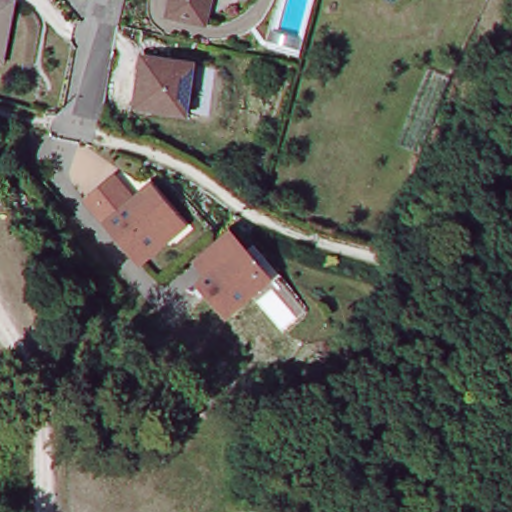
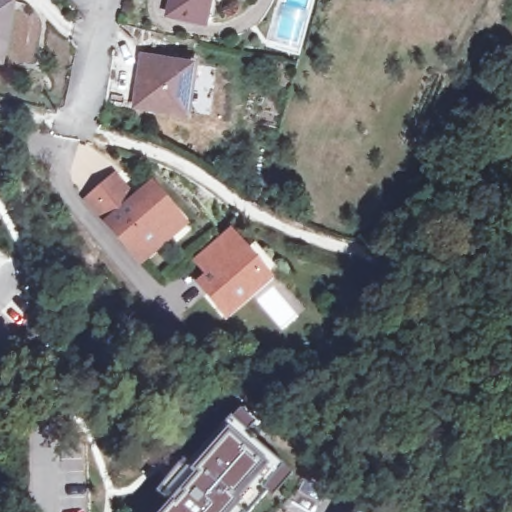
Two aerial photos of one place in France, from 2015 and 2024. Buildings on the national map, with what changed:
unchanged [(0,59),(0,0),(12,0),(1,59),(0,59)]
unchanged [(170,12),(173,0),(208,0),(204,20),(170,12)]
unchanged [(148,57),(197,64),(190,112),(141,105),(148,57)]
unchanged [(160,240),(134,262),(81,200),(110,176),(125,195),(128,199),(142,187),(167,217),(175,227),(160,240)]
unchanged [(232,254),(244,244),(270,275),(252,289),(248,283),(213,313),(188,283),(200,273),(188,259),(217,235),(232,254)]
new [(190,475),(182,467),(226,421),(277,465),(257,488),(261,492),(243,512),(241,512),(238,510),(236,512),(157,512),(190,475)]

